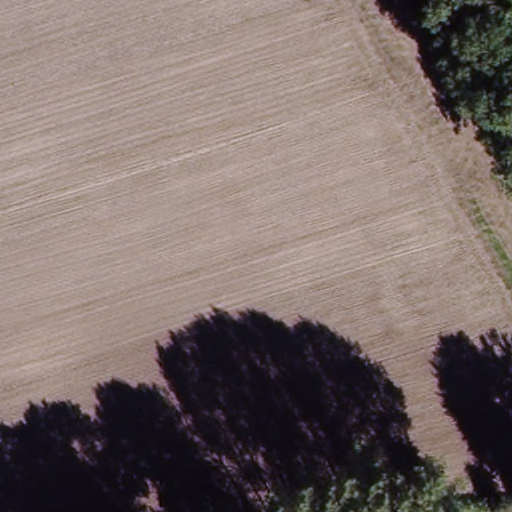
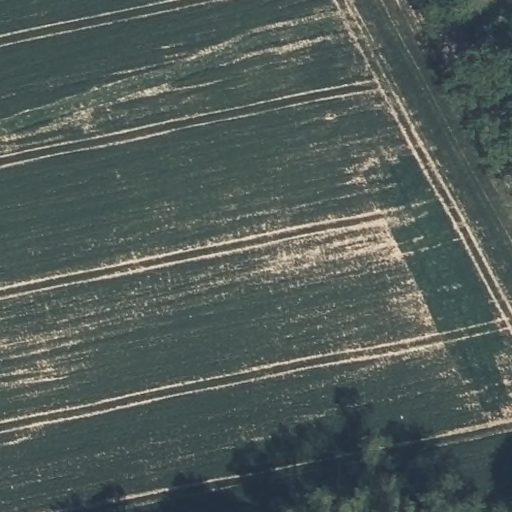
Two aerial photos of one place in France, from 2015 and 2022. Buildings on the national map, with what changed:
[]

